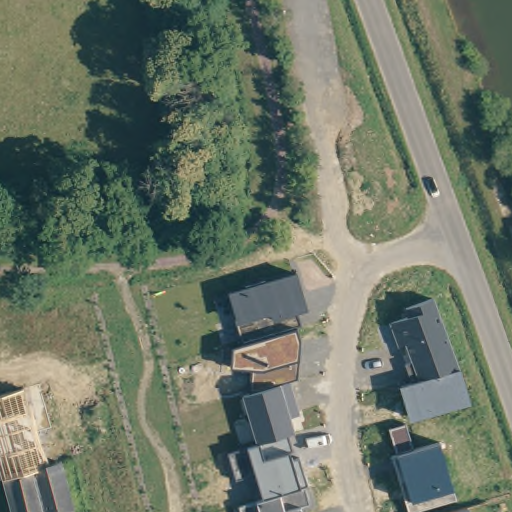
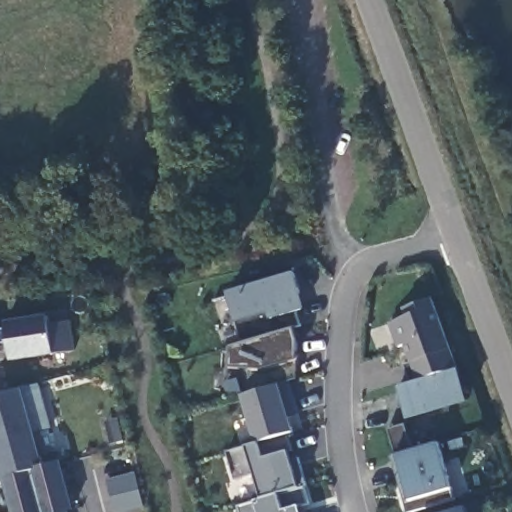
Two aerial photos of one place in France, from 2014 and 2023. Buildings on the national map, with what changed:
unchanged [(296,271),(309,311),(294,314),(297,326),(242,341),(228,293),(296,271)]
unchanged [(459,369),(411,382),(391,324),(409,318),(406,310),(436,298),(459,369)]
new [(9,326),(51,320),(52,327),(72,324),(76,353),(14,363),(11,345),(0,347),(0,332),(10,331),(9,326)]
unchanged [(298,329),(300,340),(299,362),(293,379),(250,392),(251,369),(233,365),(235,350),(298,329)]
new [(0,355),(0,351),(1,355),(0,355)]
unchanged [(472,403),(410,421),(399,386),(461,369),(472,403)]
unchanged [(298,413),(291,415),(295,430),(258,442),(246,397),(292,382),(298,413)]
unchanged [(35,417),(41,445),(47,465),(61,461),(76,511),(70,512),(11,512),(0,473),(0,394),(28,386),(35,417)]
unchanged [(415,512),(410,512),(392,458),(397,456),(391,431),(409,426),(416,450),(440,444),(457,500),(415,512)]
unchanged [(291,460),(300,457),(309,483),(299,486),(264,496),(256,471),(234,478),(227,453),(289,435),(291,460)]
new [(137,476),(146,510),(138,512),(118,512),(110,483),(137,476)]
unchanged [(313,504),(299,508),(301,512),(243,512),(242,507),(306,488),(313,504)]
unchanged [(470,512),(447,512),(469,507),(470,512)]

